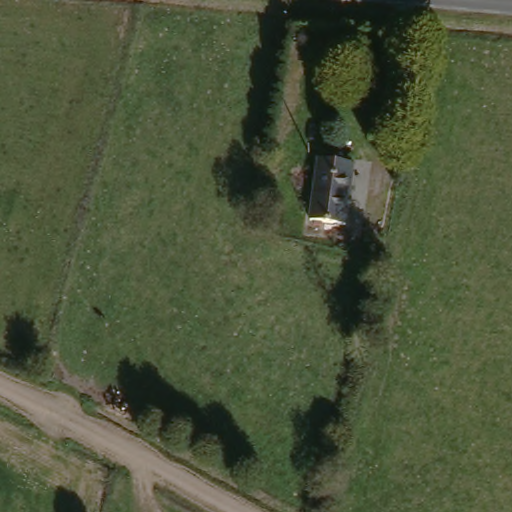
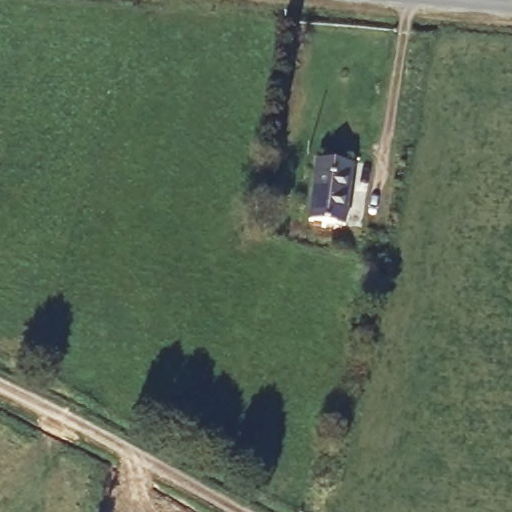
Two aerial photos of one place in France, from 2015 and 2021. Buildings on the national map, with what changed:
unchanged [(310,222),(318,161),(353,166),(345,227),(310,222)]

